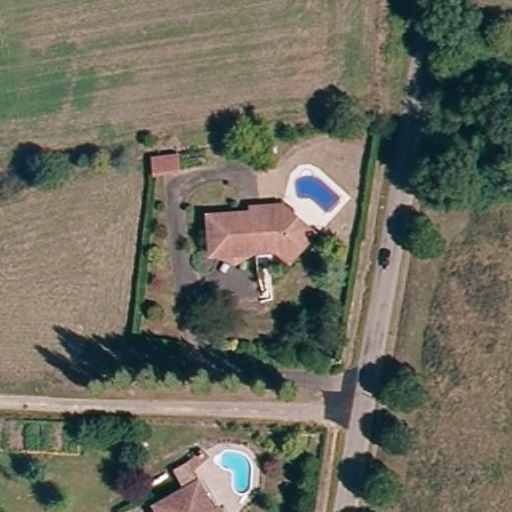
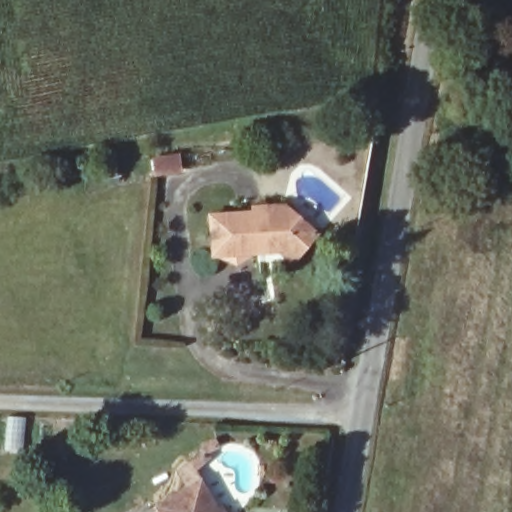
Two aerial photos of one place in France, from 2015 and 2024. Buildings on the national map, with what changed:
unchanged [(182,170),(159,174),(156,160),(180,156),(182,170)]
unchanged [(258,250),(217,250),(219,210),(260,212),(262,204),(294,206),(317,241),(305,250),(288,261),(276,245),(258,246),(258,250)]
unchanged [(204,512),(161,512),(155,500),(196,477),(211,507),(204,512)]
unchanged [(219,504),(223,512),(204,512),(211,507),(219,504)]

